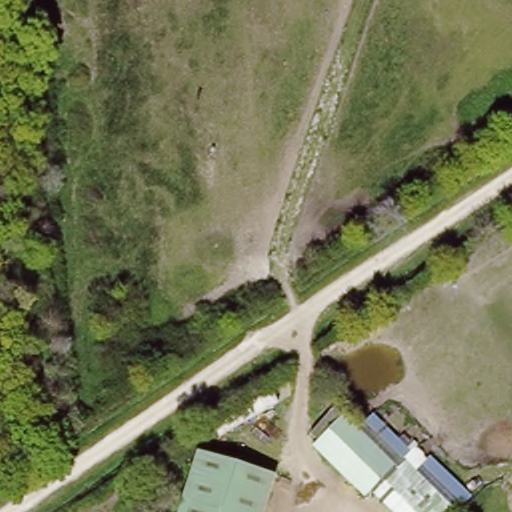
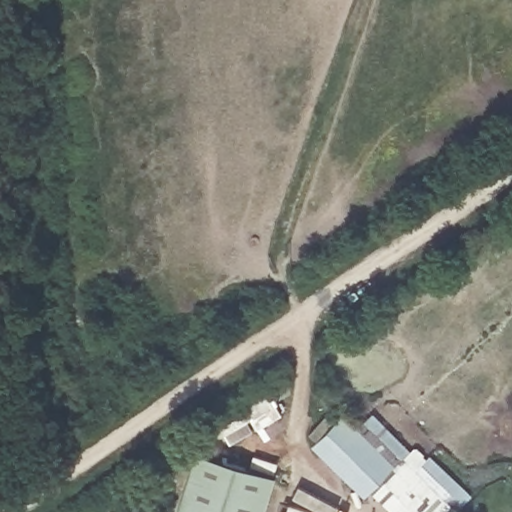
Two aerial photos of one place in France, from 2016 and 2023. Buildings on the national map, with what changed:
unchanged [(383,478),(415,512),(393,512),(372,489),(364,496),(312,443),(340,412),(394,464),(381,476),(383,478)]
unchanged [(420,467),(461,512),(415,512),(381,476),(416,443),(433,461),(420,467)]
unchanged [(267,484),(259,512),(173,512),(188,460),(267,484)]

